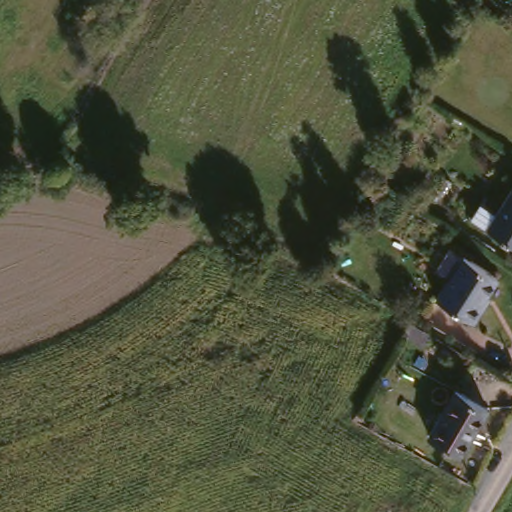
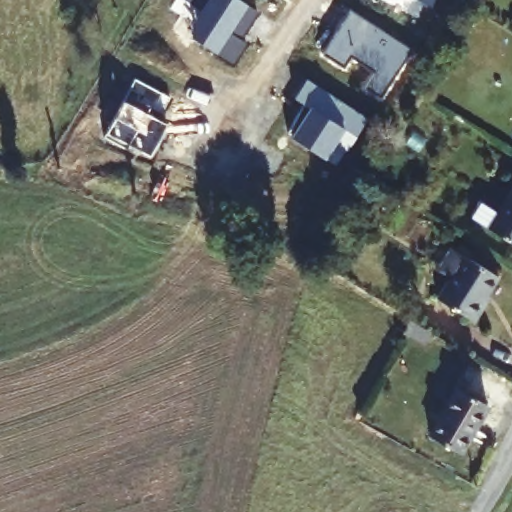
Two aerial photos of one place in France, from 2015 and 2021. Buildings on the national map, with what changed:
new [(247,32),(244,30),(239,37),(249,44),(235,65),(204,44),(210,33),(195,24),(204,10),(188,0),(241,0),(260,12),(247,32)]
new [(422,0),(433,0),(431,5),(422,0)]
new [(341,25),(351,10),(412,49),(381,98),(364,87),(374,72),(351,57),(344,67),(322,54),(337,31),(341,25)]
new [(170,96),(162,112),(158,119),(167,124),(150,155),(130,145),(128,149),(104,136),(135,77),(170,96)]
new [(334,140),(324,157),(291,135),(292,135),(287,131),(296,115),(304,103),(295,97),(307,78),(368,117),(354,138),(347,149),(334,140)]
unchanged [(488,227),(468,215),(478,199),(498,210),(512,187),(512,244),(487,229),(488,227)]
unchanged [(500,278),(482,306),(485,308),(475,323),(438,300),(452,278),(439,270),(453,247),(500,278)]
unchanged [(434,327),(431,341),(403,327),(410,315),(434,327)]
unchanged [(489,403),(464,452),(430,435),(455,386),(489,403)]

